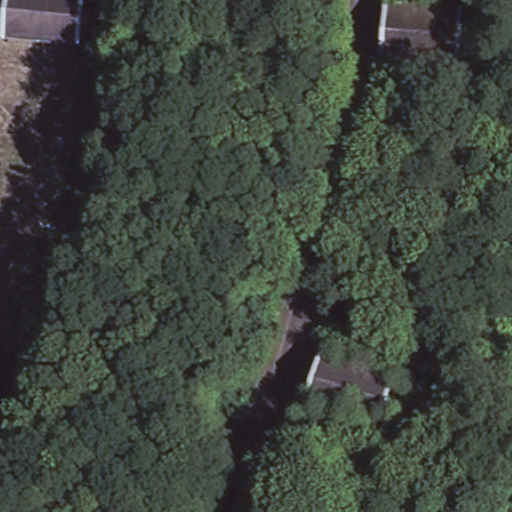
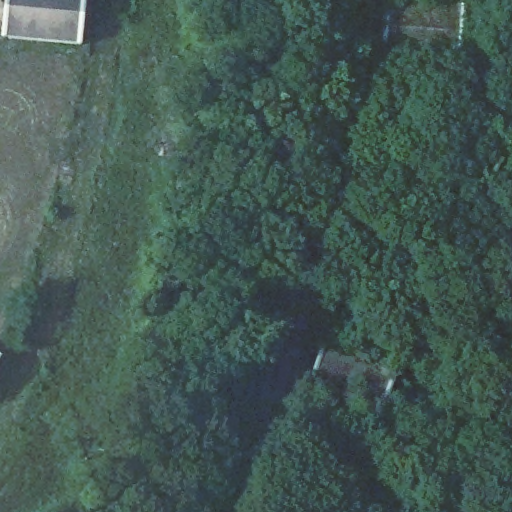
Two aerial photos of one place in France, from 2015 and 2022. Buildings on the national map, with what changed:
unchanged [(5,0),(86,0),(82,49),(5,45),(5,0)]
unchanged [(382,55),(386,0),(423,0),(466,4),(463,62),(382,55)]
unchanged [(303,403),(323,345),(398,372),(381,425),(303,403)]
unchanged [(0,364),(0,350),(5,352),(0,364)]

